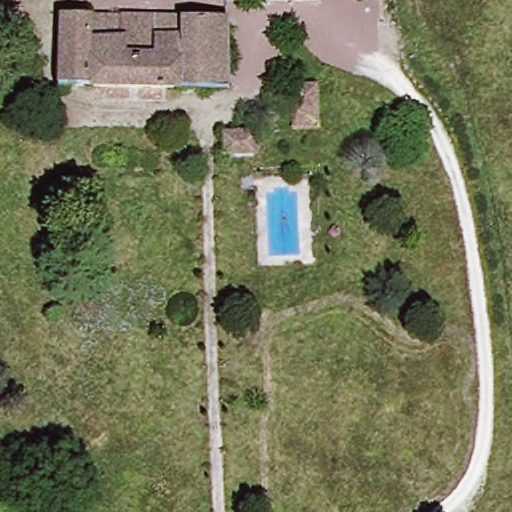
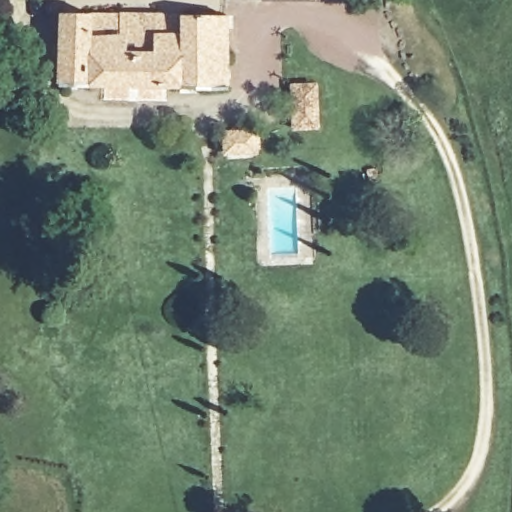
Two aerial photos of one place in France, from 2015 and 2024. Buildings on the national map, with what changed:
unchanged [(126,54),(160,54),(160,14),(231,15),(232,88),(62,85),(65,13),(126,14),(126,54)]
unchanged [(292,93),(313,91),(316,129),(294,131),(292,93)]
unchanged [(254,153),(224,153),(224,133),(254,133),(254,153)]

